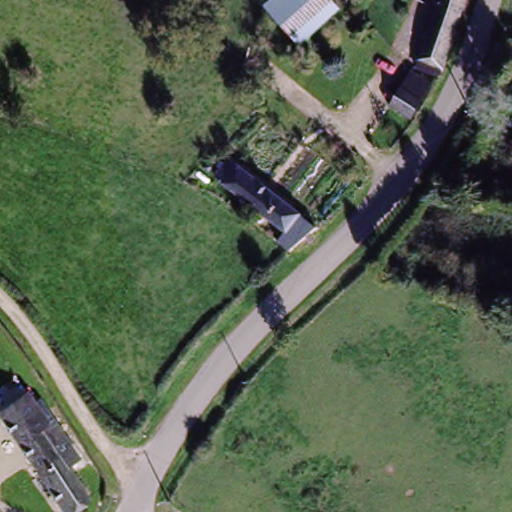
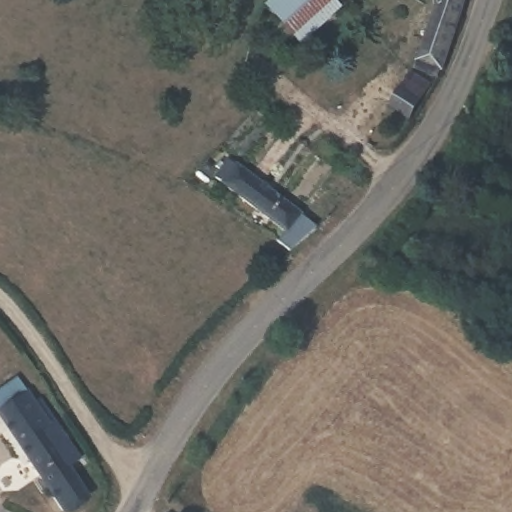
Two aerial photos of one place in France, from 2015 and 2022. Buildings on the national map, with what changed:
unchanged [(289,0),(332,0),(340,7),(301,45),(272,16),(289,0)]
unchanged [(462,0),(439,79),(432,99),(405,89),(434,0),(462,0)]
unchanged [(419,108),(407,121),(390,106),(402,93),(419,108)]
unchanged [(283,256),(269,244),(275,235),(206,183),(223,163),(311,230),(283,256)]
unchanged [(74,483),(85,502),(66,512),(60,512),(0,408),(24,395),(34,389),(60,434),(85,477),(74,483)]

